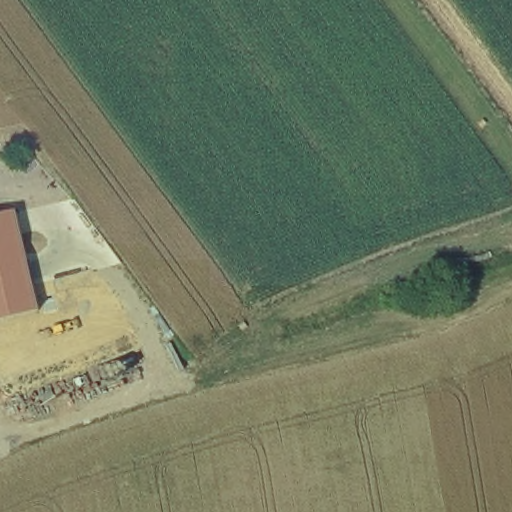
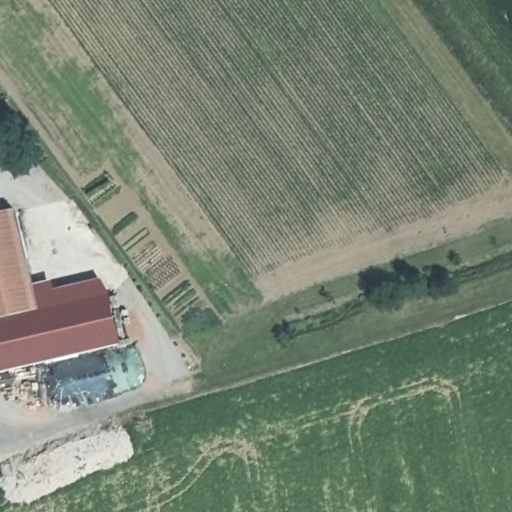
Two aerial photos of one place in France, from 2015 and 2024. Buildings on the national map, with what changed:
unchanged [(40,310),(0,319),(0,216),(17,212),(40,310)]
new [(57,290),(104,280),(114,296),(123,344),(0,374),(0,319),(40,310),(35,286),(55,281),(57,290)]

